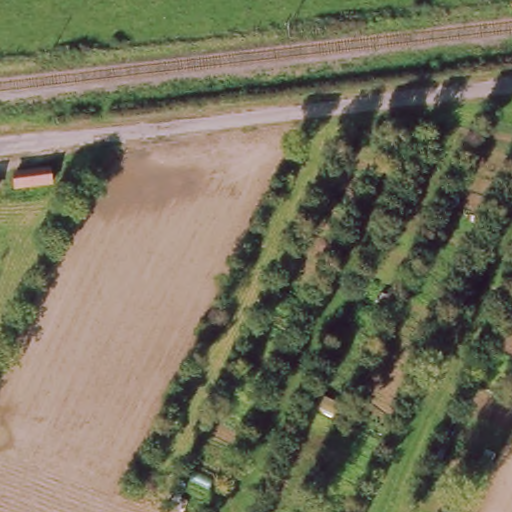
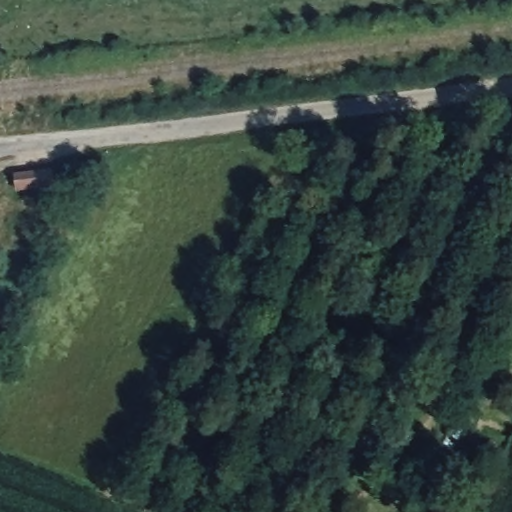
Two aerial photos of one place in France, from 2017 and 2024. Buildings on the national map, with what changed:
unchanged [(2,181),(37,178),(38,190),(3,194),(2,181)]

